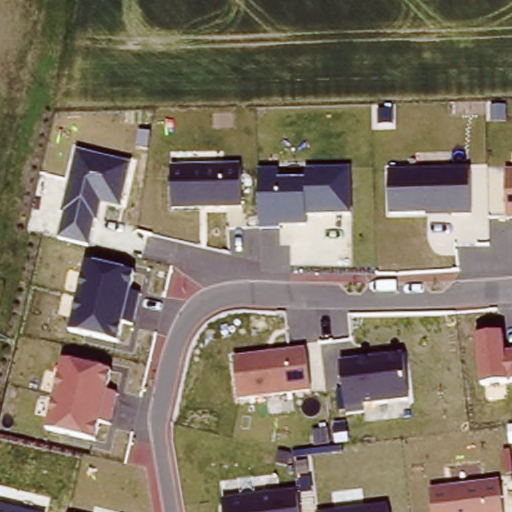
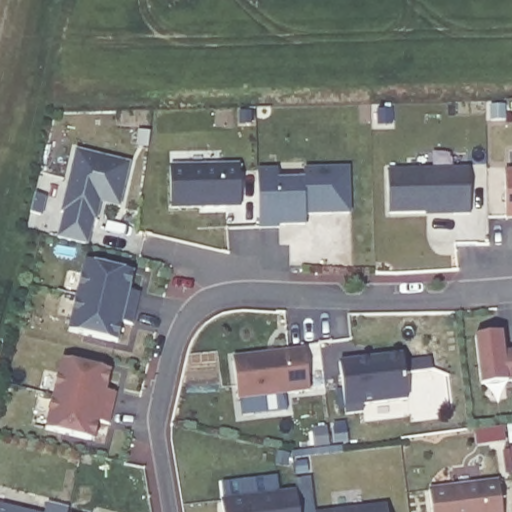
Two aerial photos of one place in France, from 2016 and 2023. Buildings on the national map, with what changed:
unchanged [(132,163),(122,208),(102,203),(92,247),(57,237),(79,150),(132,163)]
unchanged [(240,166),(242,208),(174,208),(174,166),(240,166)]
unchanged [(282,169),(284,182),(310,182),(309,168),(351,166),(352,214),(308,215),(309,227),(261,228),(260,169),(282,169)]
unchanged [(470,169),(472,214),(390,214),(390,170),(470,169)]
unchanged [(512,217),(508,218),(507,170),(512,170),(512,217)]
unchanged [(137,273),(119,346),(70,334),(86,260),(137,273)]
unchanged [(502,334),(505,350),(512,349),(512,382),(482,385),(477,337),(502,334)]
unchanged [(305,348),(310,394),(239,400),(235,356),(305,348)]
unchanged [(406,356),(410,401),(362,406),(364,414),(347,414),(341,362),(406,356)]
unchanged [(112,373),(97,442),(47,430),(63,362),(112,373)]
unchanged [(499,481),(501,512),(434,512),(432,489),(499,481)]
unchanged [(296,489),(300,512),(224,512),(222,498),(296,489)]
unchanged [(37,512),(0,512),(0,503),(37,512)]
unchanged [(387,504),(388,512),(321,512),(387,504)]

